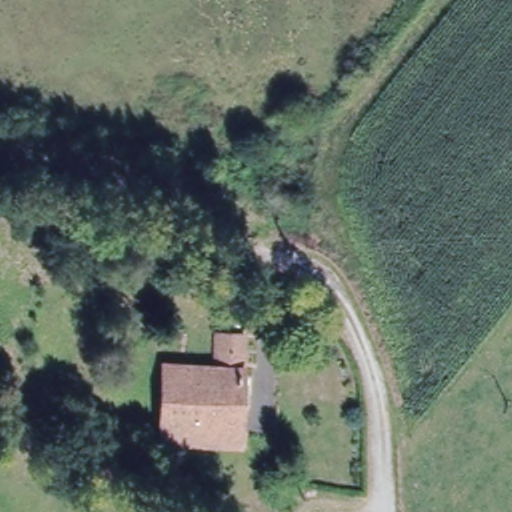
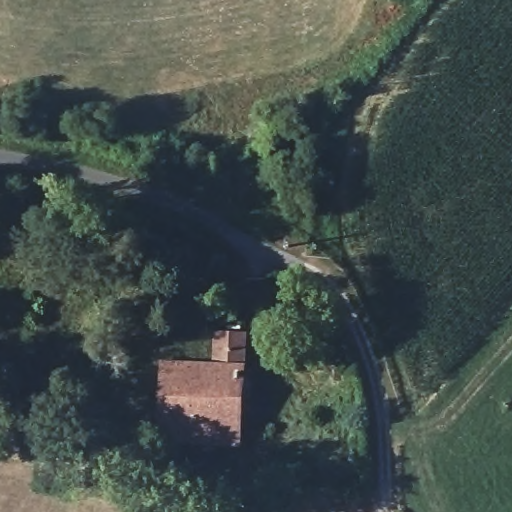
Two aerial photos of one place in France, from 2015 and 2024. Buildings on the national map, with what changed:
unchanged [(242,358),(212,358),(215,322),(244,323),(242,358)]
unchanged [(237,464),(159,463),(161,356),(212,358),(242,358),(237,464)]

